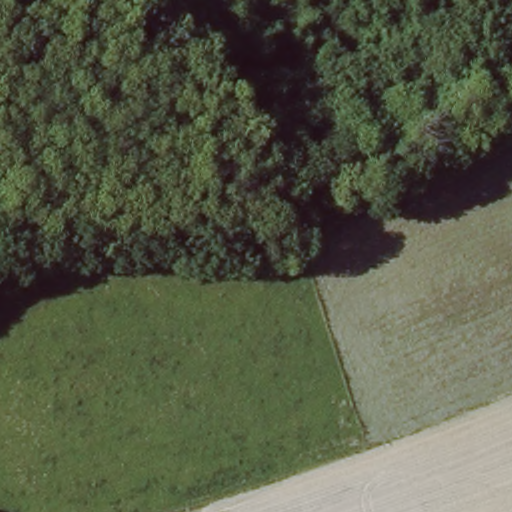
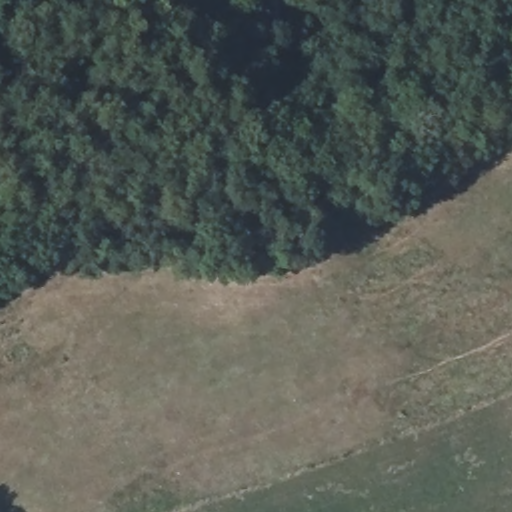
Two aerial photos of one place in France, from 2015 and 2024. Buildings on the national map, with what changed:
[]

